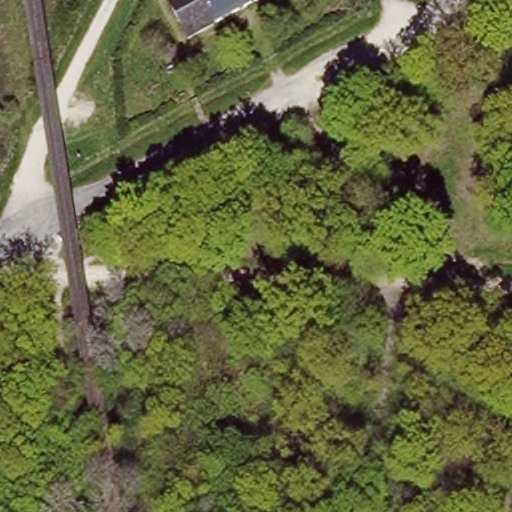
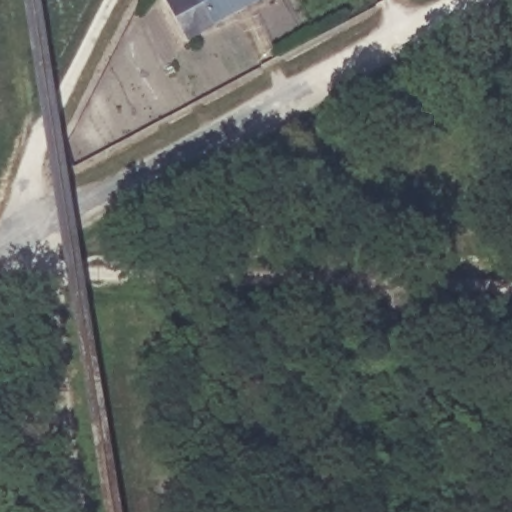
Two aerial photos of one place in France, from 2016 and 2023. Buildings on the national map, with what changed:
unchanged [(169,0),(257,0),(194,37),(169,0)]

